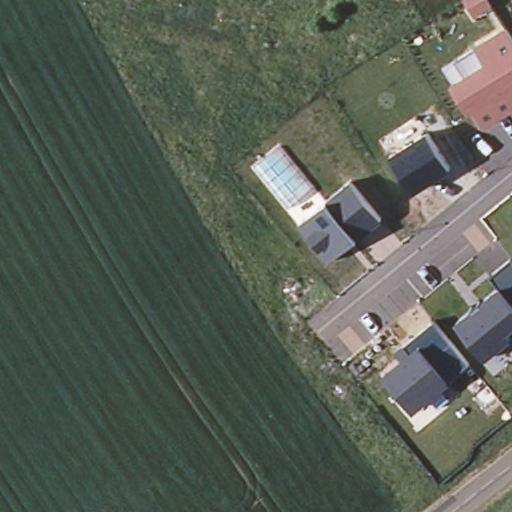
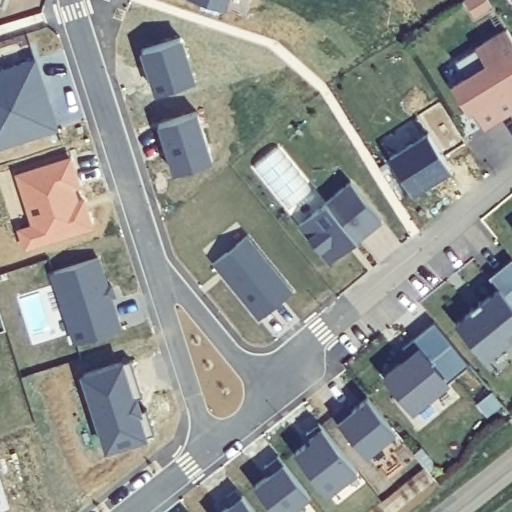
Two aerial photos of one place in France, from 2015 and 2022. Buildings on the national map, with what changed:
new [(0,7),(0,0),(6,0),(3,8),(0,7)]
new [(207,0),(227,0),(225,6),(207,0)]
unchanged [(484,129),(454,85),(465,77),(455,62),(477,46),(507,28),(512,36),(512,112),(511,109),(484,129)]
new [(182,45),(195,85),(156,99),(142,57),(182,45)]
new [(35,62),(44,90),(48,103),(57,131),(4,148),(0,150),(0,73),(35,62)]
new [(197,119),(212,167),(173,179),(157,131),(197,119)]
unchanged [(414,193),(388,155),(429,134),(452,169),(414,193)]
new [(70,161),(79,188),(73,190),(81,213),(87,211),(92,229),(26,250),(20,233),(34,228),(18,178),(70,161)]
unchanged [(330,262),(298,223),(348,182),(383,221),(330,262)]
new [(293,294),(258,321),(215,266),(247,237),(293,294)]
new [(95,259),(118,330),(78,343),(54,272),(95,259)]
unchanged [(490,279),(512,260),(512,329),(506,334),(511,340),(485,361),(456,326),(499,291),(490,279)]
unchanged [(447,383),(413,409),(385,376),(410,354),(403,346),(434,321),(470,363),(447,383)]
new [(130,366),(142,402),(136,404),(140,417),(146,414),(154,440),(106,455),(82,381),(130,366)]
new [(396,438),(367,463),(339,428),(368,405),(396,438)]
new [(313,441),(307,434),(320,424),(359,473),(329,496),(296,454),(313,441)]
new [(271,475),(266,468),(279,457),(311,498),(293,512),(274,512),(255,488),(271,475)]
new [(230,507),(224,500),(238,489),(255,512),(224,512),(230,507)]

